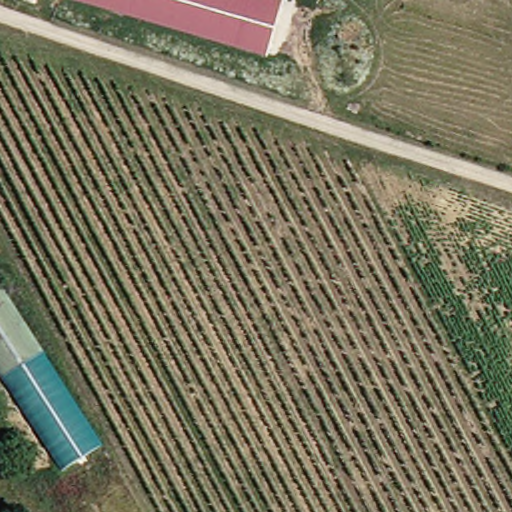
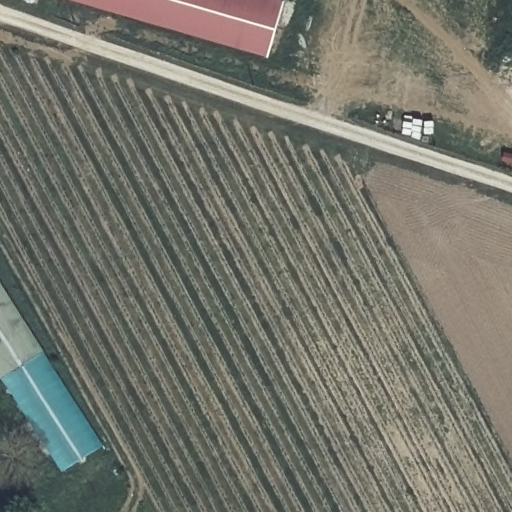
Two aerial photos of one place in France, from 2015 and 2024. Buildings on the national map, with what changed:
unchanged [(288,6),(273,57),(87,0),(266,0),(288,6)]
unchanged [(4,372),(0,366),(0,278),(44,347),(4,372)]
unchanged [(104,443),(63,466),(4,372),(44,347),(104,443)]

